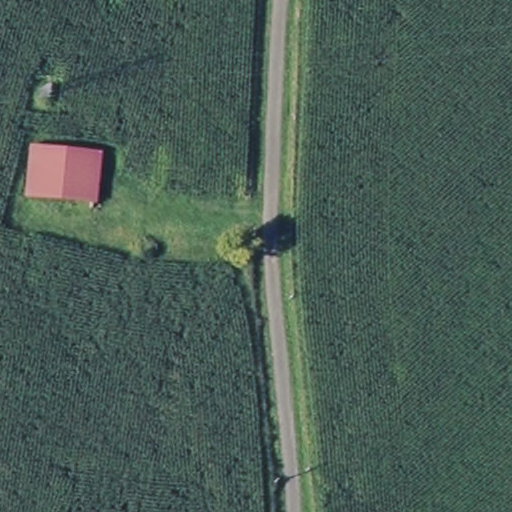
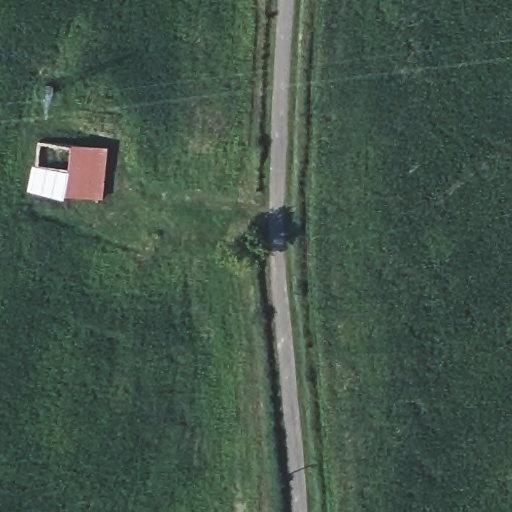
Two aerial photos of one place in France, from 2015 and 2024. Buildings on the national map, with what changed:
unchanged [(35,189),(38,143),(104,147),(102,193),(35,189)]

